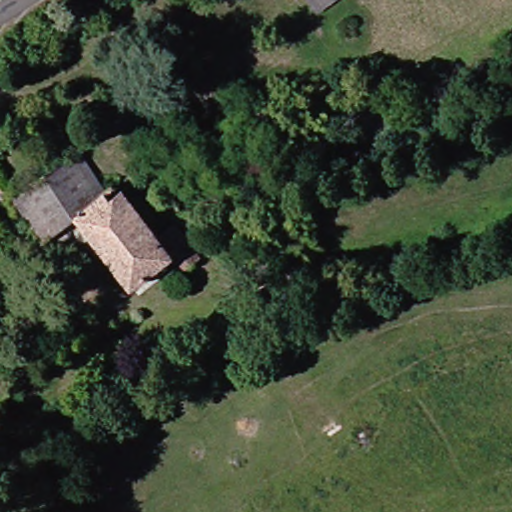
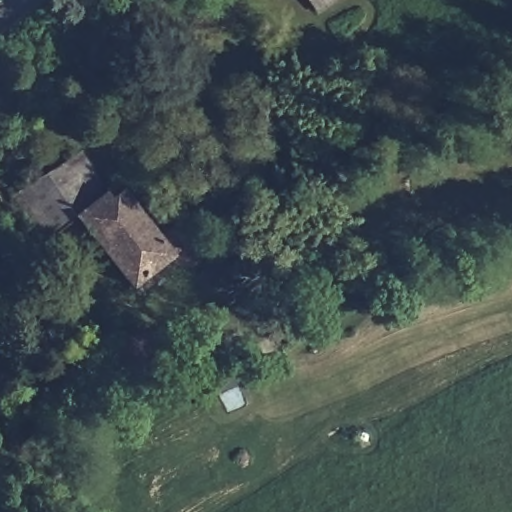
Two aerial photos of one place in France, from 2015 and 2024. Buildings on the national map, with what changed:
unchanged [(317,16),(305,0),(339,0),(317,16)]
unchanged [(177,280),(164,265),(130,289),(74,220),(46,245),(11,199),(68,152),(110,201),(120,191),(130,203),(159,238),(175,227),(188,245),(199,263),(177,280)]

